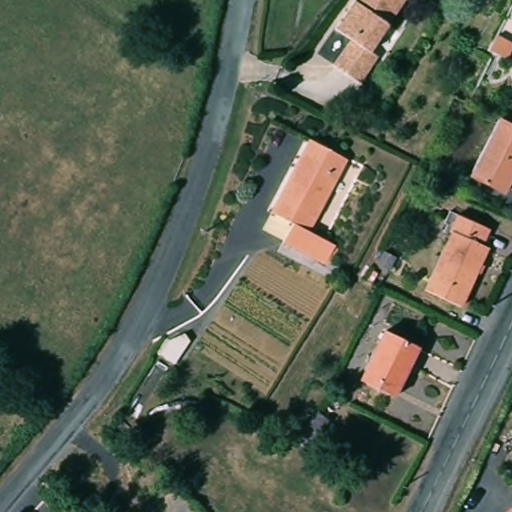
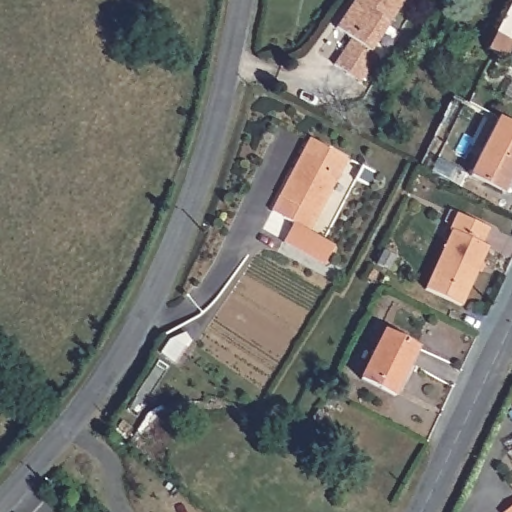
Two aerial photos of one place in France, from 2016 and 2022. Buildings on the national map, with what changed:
unchanged [(377,55),(358,82),(332,64),(350,38),(335,27),(353,0),(404,0),(370,50),(377,55)]
unchanged [(490,34),(497,19),(512,26),(512,29),(505,42),(490,34)]
unchanged [(470,172),(497,120),(512,127),(512,164),(500,189),(470,172)]
unchanged [(310,231),(335,244),(325,263),(283,240),(293,221),(272,211),(311,137),(350,158),(310,231)]
unchanged [(369,178),(351,169),(360,154),(376,163),(369,178)]
unchanged [(460,298),(425,281),(455,222),(489,240),(460,298)]
unchanged [(421,344),(392,397),(356,380),(382,328),(421,344)]
unchanged [(507,423),(512,421),(512,434),(507,423)]
unchanged [(512,506),(512,512),(504,512),(512,506)]

